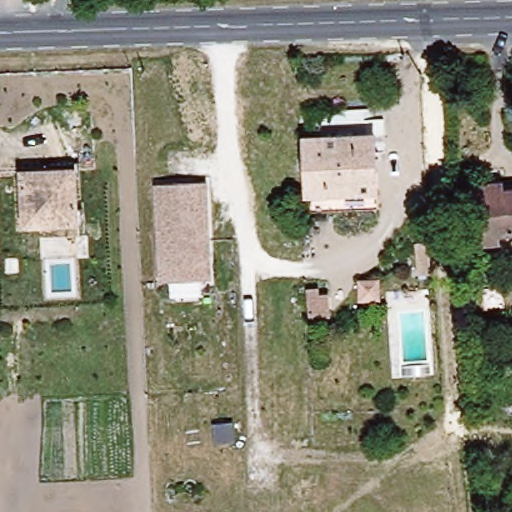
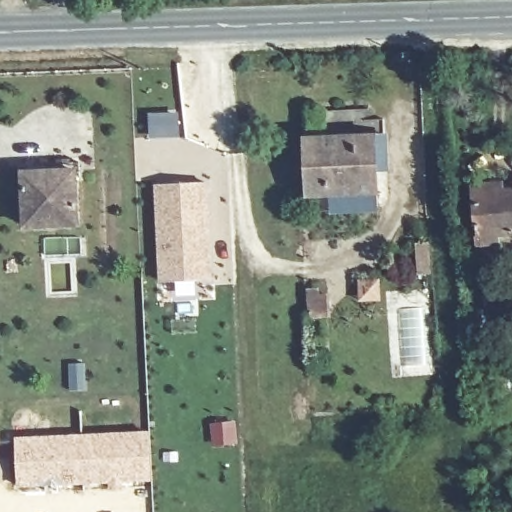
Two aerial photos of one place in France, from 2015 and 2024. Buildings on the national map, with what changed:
unchanged [(385,152),(375,153),(378,208),(308,211),(305,138),(312,137),(311,112),(320,112),(321,137),(385,134),(385,152)]
unchanged [(78,226),(23,228),(21,172),(76,170),(78,226)]
unchanged [(157,185),(205,184),(212,278),(165,283),(157,185)]
unchanged [(496,241),(477,242),(473,185),(501,184),(502,191),(512,190),(512,233),(496,234),(496,241)]
new [(235,420),(237,443),(210,445),(209,422),(235,420)]
new [(150,430),(152,482),(114,486),(73,485),(15,486),(14,435),(150,430)]

